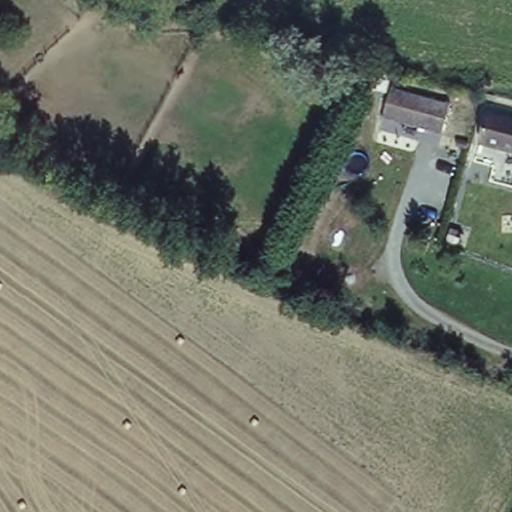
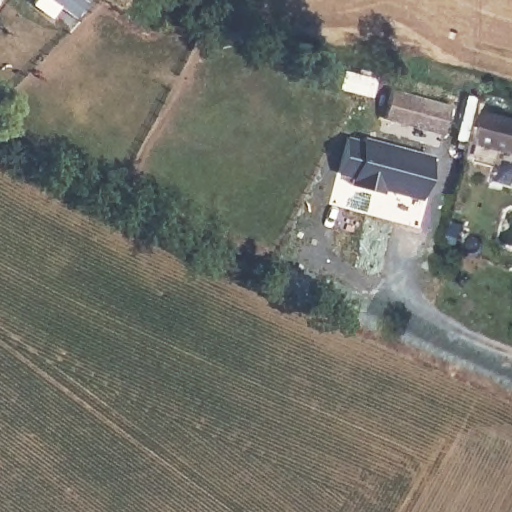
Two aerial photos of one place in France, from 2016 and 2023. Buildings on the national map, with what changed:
unchanged [(442,135),(381,120),(390,88),(452,105),(442,135)]
unchanged [(512,119),(512,153),(476,143),(484,112),(512,119)]
new [(384,189),(382,194),(352,185),(353,177),(337,172),(347,136),(362,140),(363,137),(432,155),(421,199),(384,189)]

